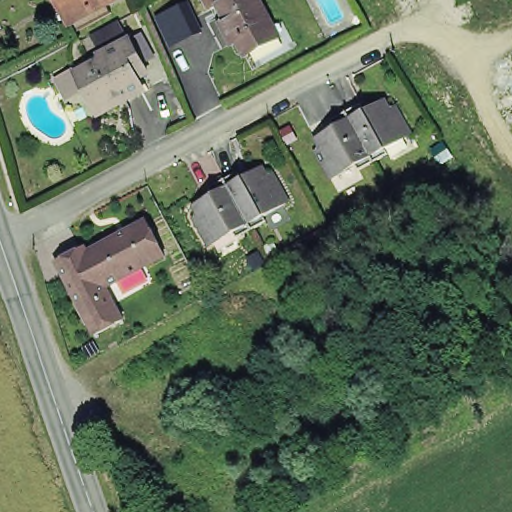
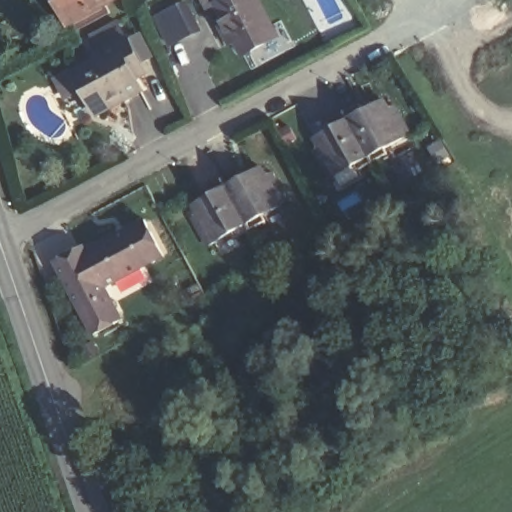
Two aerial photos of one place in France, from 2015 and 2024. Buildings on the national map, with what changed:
unchanged [(69,30),(52,0),(104,0),(100,2),(104,11),(69,30)]
unchanged [(223,24),(229,20),(220,4),(228,0),(262,0),(275,26),(281,37),(269,43),(247,55),(239,39),(233,42),(229,34),(223,24)]
unchanged [(118,97),(115,91),(90,105),(77,82),(83,79),(75,64),(94,52),(92,48),(121,32),(136,58),(141,67),(131,74),(138,85),(118,97)]
unchanged [(361,103),(365,109),(384,99),(389,106),(395,104),(411,133),(386,147),(389,153),(374,161),(346,112),(361,103)]
unchanged [(331,177),(315,147),(319,145),(315,136),(335,125),(332,119),(346,112),(374,161),(359,169),(355,164),(331,177)]
unchanged [(238,170),(242,176),(262,166),(267,174),(272,171),(288,200),(263,214),(266,220),(251,228),(224,178),(238,170)]
unchanged [(191,214),(197,211),(193,203),(213,192),(210,186),(224,178),(251,228),(236,236),(233,230),(207,244),(191,214)]
unchanged [(103,280),(120,313),(91,327),(54,254),(82,239),(85,244),(144,213),(163,249),(103,280)]

